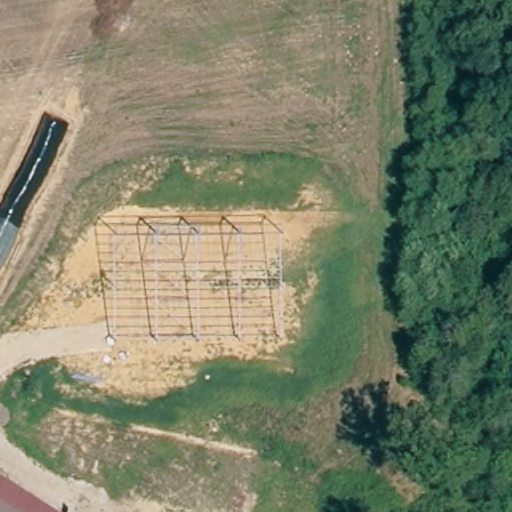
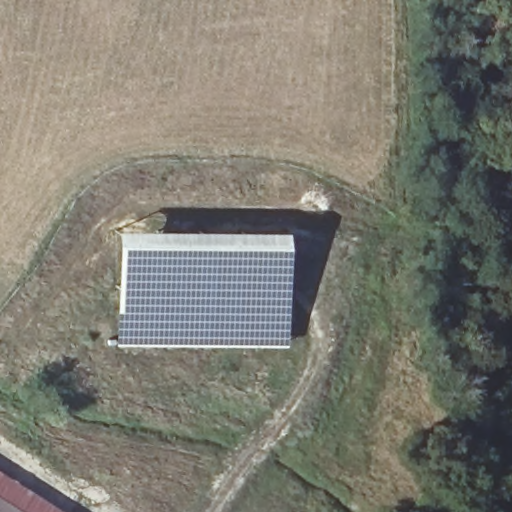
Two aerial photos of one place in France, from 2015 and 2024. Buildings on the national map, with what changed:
new [(286,228),(285,344),(115,342),(115,227),(286,228)]
unchanged [(0,490),(34,512),(0,512),(0,490)]

